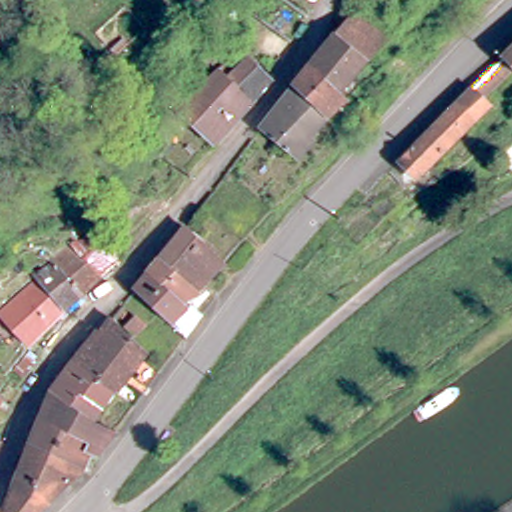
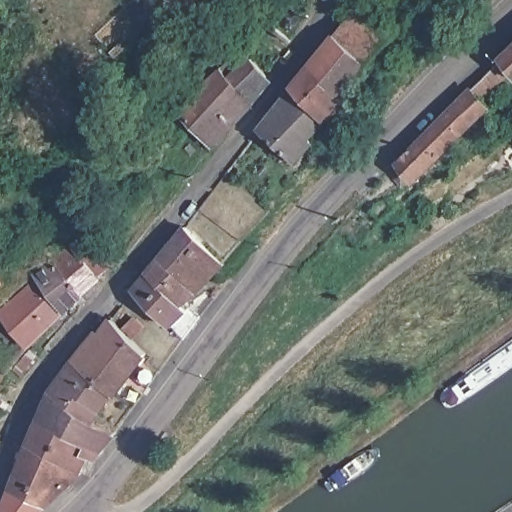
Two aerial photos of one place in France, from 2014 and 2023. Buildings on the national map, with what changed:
unchanged [(241,17),(271,0),(281,9),(303,28),(286,56),(241,17)]
unchanged [(345,30),(359,15),(363,19),(369,12),(395,37),(376,59),(345,30)]
unchanged [(306,80),(345,30),(376,59),(351,89),(359,97),(340,115),(306,80)]
unchanged [(203,125),(196,119),(233,77),(241,85),(261,64),(275,77),(255,100),(261,106),(223,146),(203,125)]
unchanged [(484,90),(485,90),(512,64),(512,83),(494,100),(503,108),(432,181),(430,179),(421,189),(404,173),(414,163),(484,90)]
unchanged [(340,115),(323,132),(328,137),(306,160),(271,125),(306,80),(340,115)]
unchanged [(201,307),(213,318),(196,342),(143,288),(156,270),(166,257),(191,224),(233,266),(206,295),(194,304),(199,310),(201,307)]
unchanged [(86,300),(58,266),(79,254),(99,242),(106,250),(114,260),(96,275),(104,284),(86,300)]
unchanged [(37,277),(36,277),(58,265),(58,266),(86,300),(68,317),(38,279),(37,277)]
unchanged [(0,319),(0,314),(38,279),(68,317),(30,351),(0,319)]
unchanged [(150,311),(162,323),(150,335),(138,323),(150,311)]
unchanged [(123,394),(80,356),(105,330),(108,331),(121,317),(156,355),(148,365),(125,396),(123,394)]
unchanged [(41,363),(35,370),(29,380),(26,385),(14,375),(30,355),(33,356),(41,363)]
unchanged [(123,394),(103,422),(56,391),(80,356),(123,394)]
unchanged [(103,422),(130,436),(134,438),(120,467),(103,458),(95,475),(35,442),(38,432),(56,391),(103,422)]
unchanged [(5,440),(0,463),(0,438),(5,440)]
unchanged [(94,477),(53,512),(16,512),(13,510),(35,442),(95,475),(94,477)]

